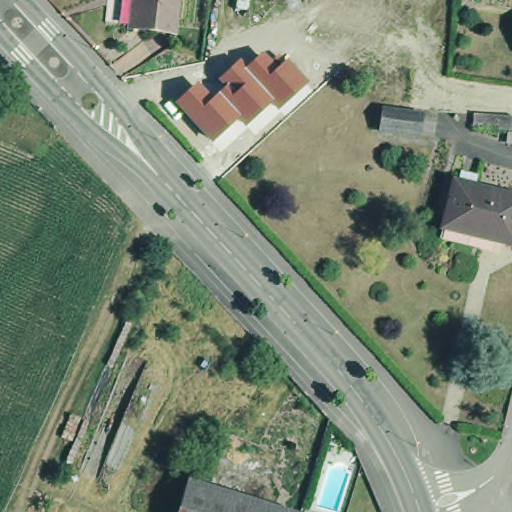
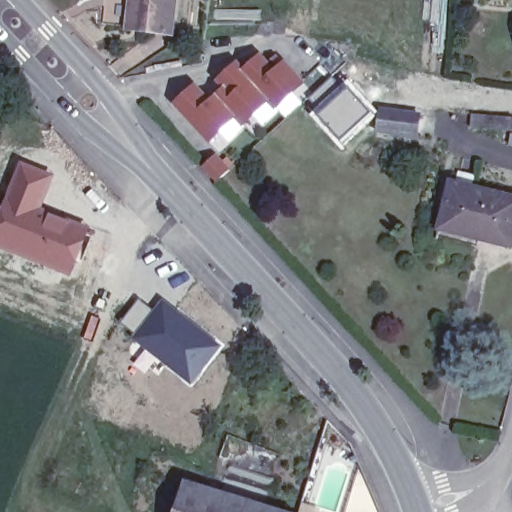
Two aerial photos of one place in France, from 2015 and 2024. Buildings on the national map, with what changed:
unchanged [(177,24),(132,19),(134,0),(179,0),(177,24)]
unchanged [(277,113),(269,104),(244,128),(236,120),(210,144),(172,105),(197,80),(213,97),(222,88),(215,81),(239,58),(247,67),(262,52),(272,61),(277,55),(284,60),(307,84),(277,113)]
unchanged [(422,132),(382,127),(385,106),(425,112),(422,132)]
unchanged [(470,130),(472,115),(512,121),(512,136),(470,130)]
new [(42,214),(89,230),(70,277),(0,254),(0,205),(17,160),(57,178),(42,214)]
unchanged [(444,220),(456,173),(512,188),(512,237),(444,220)]
new [(138,297),(152,309),(162,297),(224,345),(191,386),(147,353),(130,338),(134,334),(119,321),(138,297)]
unchanged [(298,512),(181,512),(192,479),(298,512)]

